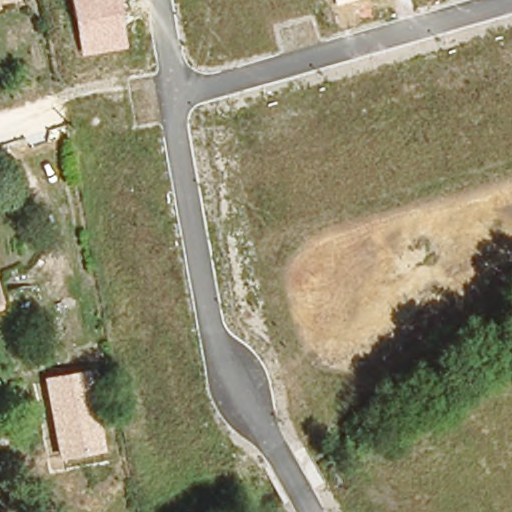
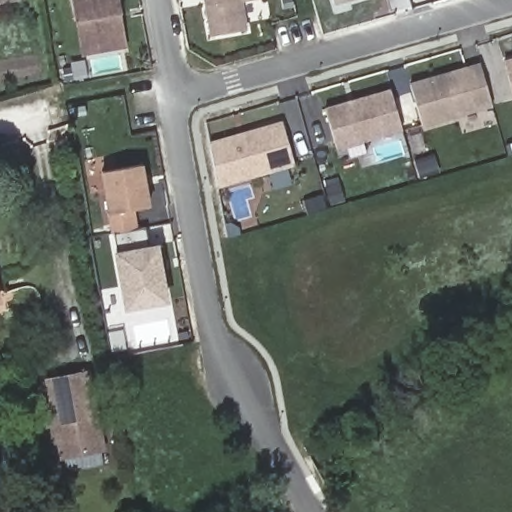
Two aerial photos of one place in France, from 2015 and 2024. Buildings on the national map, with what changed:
unchanged [(14,0),(0,2),(0,0),(14,0)]
new [(126,47),(81,55),(70,0),(118,0),(126,47)]
new [(243,1),(248,29),(209,35),(203,0),(251,0),(243,1)]
unchanged [(334,4),(333,0),(347,0),(334,4)]
new [(512,59),(512,88),(504,61),(512,59)]
new [(409,82),(479,62),(492,106),(421,126),(409,82)]
new [(323,108),(390,89),(401,130),(335,149),(323,108)]
new [(217,186),(210,142),(281,121),(294,165),(217,186)]
new [(145,169),(153,210),(139,212),(142,232),(118,237),(117,237),(106,176),(145,169)]
new [(150,231),(154,252),(160,250),(167,250),(174,287),(167,288),(170,304),(131,311),(118,237),(142,232),(150,231)]
unchanged [(1,290),(4,302),(0,304),(0,289),(1,290)]
unchanged [(109,451),(58,460),(43,377),(92,368),(109,451)]

